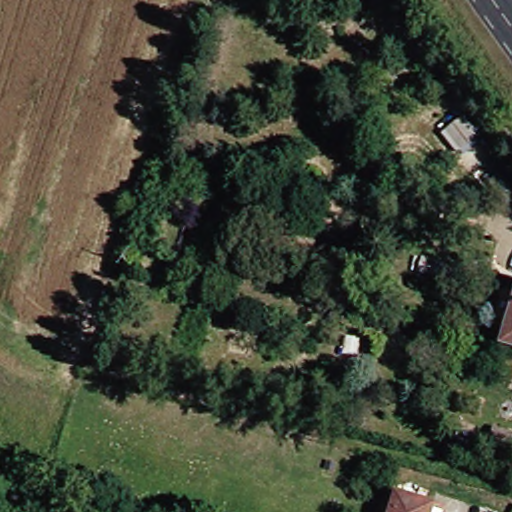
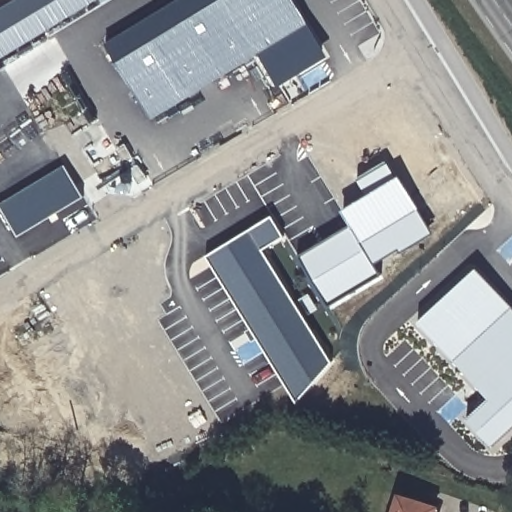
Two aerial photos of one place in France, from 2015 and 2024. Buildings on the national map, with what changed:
new [(0,57),(0,6),(10,0),(100,0),(0,57)]
new [(106,42),(177,0),(294,0),(308,24),(328,55),(278,86),(259,53),(153,118),(106,42)]
new [(1,202),(66,165),(85,196),(19,235),(1,202)]
new [(300,254),(352,225),(343,209),(398,175),(432,232),(402,251),(399,247),(374,262),(380,273),(329,303),(300,254)]
new [(207,254),(272,215),(284,235),(263,248),(332,361),(296,402),(207,254)]
new [(489,397),(418,321),(477,267),(512,304),(512,427),(492,446),(465,417),(489,397)]
demolished [(512,321),(512,348),(504,346),(512,321)]
unchanged [(429,512),(390,512),(395,497),(430,508),(429,512)]

